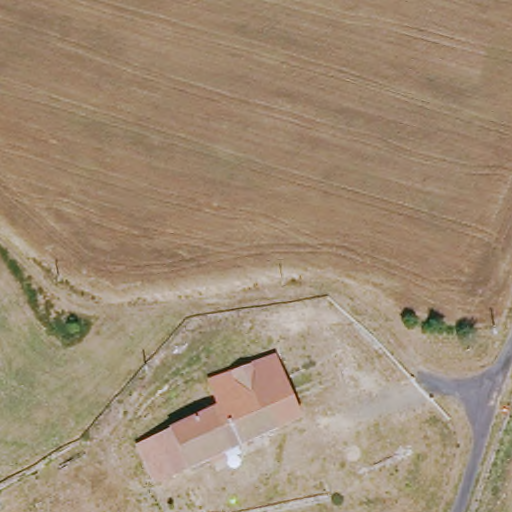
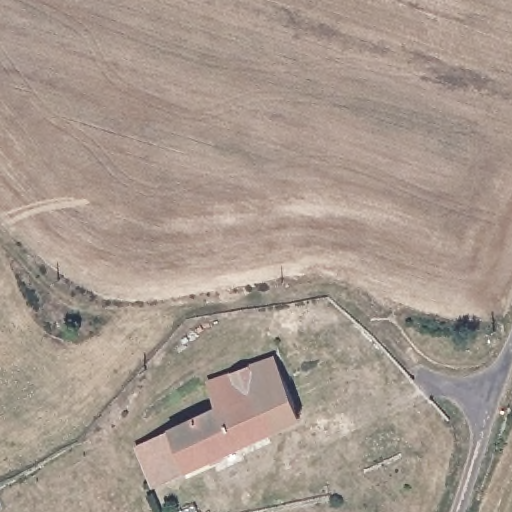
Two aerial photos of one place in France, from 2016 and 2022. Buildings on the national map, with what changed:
unchanged [(238,450),(183,476),(163,432),(211,410),(203,391),(258,362),(269,389),(260,395),(277,428),(238,450)]

